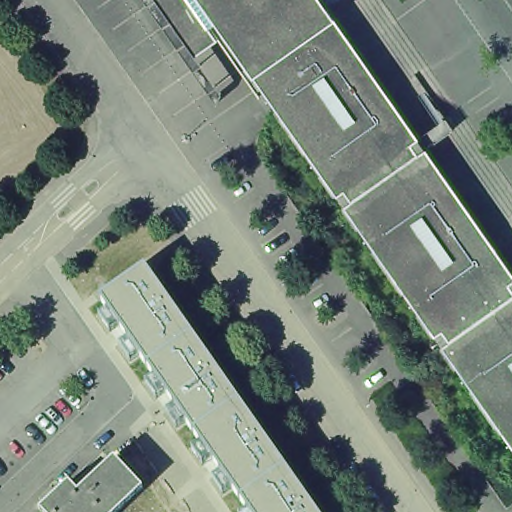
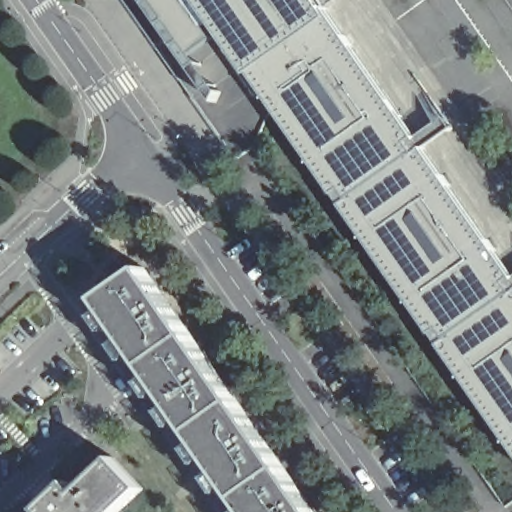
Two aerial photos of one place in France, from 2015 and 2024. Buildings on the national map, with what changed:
unchanged [(309,18),(316,13),(408,143),(400,149),(407,159),(415,153),(506,283),(498,288),(505,298),(512,293),(512,465),(431,350),(439,345),(432,335),(424,340),(333,210),(341,205),(334,195),(326,200),(266,114),(235,70),(243,65),(213,22),(205,28),(186,0),(297,0),(309,18)]
unchanged [(148,361),(101,295),(146,264),(192,330),(148,361)]
unchanged [(196,428),(148,361),(192,330),(239,397),(196,428)]
unchanged [(286,463),(242,494),(196,428),(239,397),(286,463)]
unchanged [(69,483),(78,493),(114,459),(143,489),(118,512),(41,512),(40,511),(69,483)]
unchanged [(320,512),(255,512),(242,494),(286,463),(320,512)]

